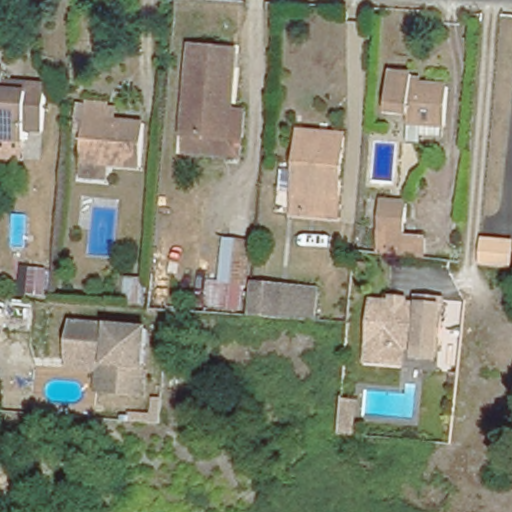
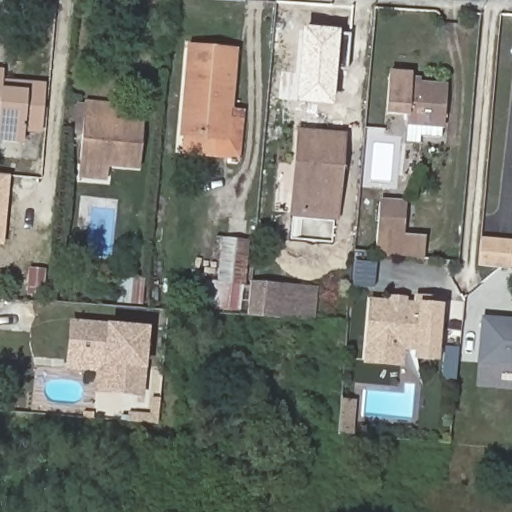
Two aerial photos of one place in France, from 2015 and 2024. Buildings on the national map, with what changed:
new [(339,31),(349,32),(346,67),(336,67),(333,106),(296,102),(302,27),(339,31)]
unchanged [(184,127),(191,42),(234,47),(230,107),(228,132),(184,127)]
unchanged [(450,120),(448,120),(447,132),(427,131),(427,138),(414,137),(415,117),(416,110),(392,107),(396,68),(418,71),(417,78),(453,81),(450,120)]
unchanged [(40,125),(26,124),(24,144),(0,141),(0,76),(3,76),(1,93),(15,94),(17,77),(27,77),(44,79),(40,125)]
unchanged [(82,172),(83,157),(87,112),(89,98),(113,100),(120,101),(119,115),(142,117),(138,162),(109,160),(107,175),(82,172)]
unchanged [(230,107),(251,109),(247,150),(183,143),(184,127),(228,132),(230,107)]
unchanged [(345,126),(337,206),(294,202),(301,122),(345,126)]
new [(4,246),(0,245),(0,175),(11,176),(4,246)]
unchanged [(417,249),(399,247),(392,246),(372,244),(378,188),(405,191),(401,222),(420,224),(417,249)]
unchanged [(199,302),(202,276),(216,277),(220,235),(243,237),(237,306),(199,302)]
unchanged [(499,267),(479,265),(481,238),(511,241),(508,268),(499,267)]
unchanged [(47,272),(45,297),(30,296),(32,271),(47,272)]
unchanged [(156,281),(154,307),(127,304),(130,279),(156,281)]
unchanged [(310,315),(290,313),(272,312),(243,310),(246,280),(292,284),(312,285),(310,315)]
unchanged [(417,297),(443,298),(439,350),(404,347),(403,362),(368,361),(373,301),(393,302),(393,297),(404,298),(404,303),(416,305),(417,297)]
new [(512,320),(512,365),(479,362),(483,317),(512,320)]
unchanged [(68,360),(70,322),(145,328),(142,365),(105,362),(68,360)]
unchanged [(142,365),(140,392),(103,390),(105,362),(142,365)]
unchanged [(354,402),(351,437),(347,437),(337,436),(338,428),(340,401),(354,402)]

